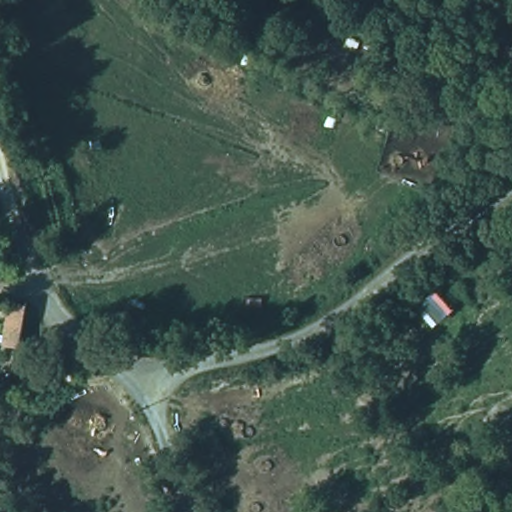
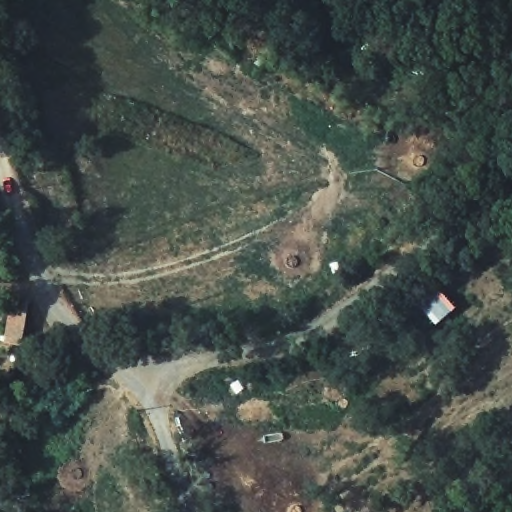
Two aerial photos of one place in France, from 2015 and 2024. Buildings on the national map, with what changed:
unchanged [(10,302),(27,306),(22,346),(2,345),(10,302)]

